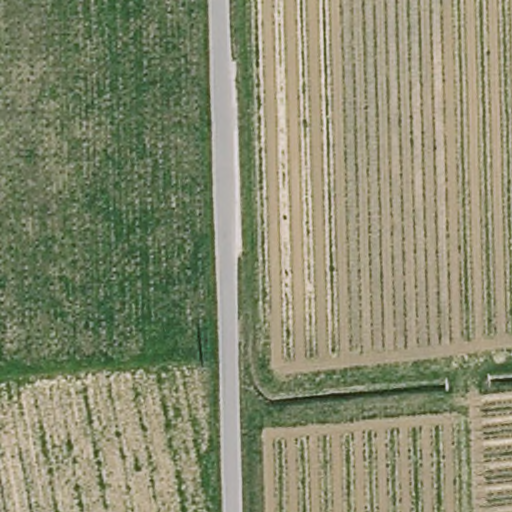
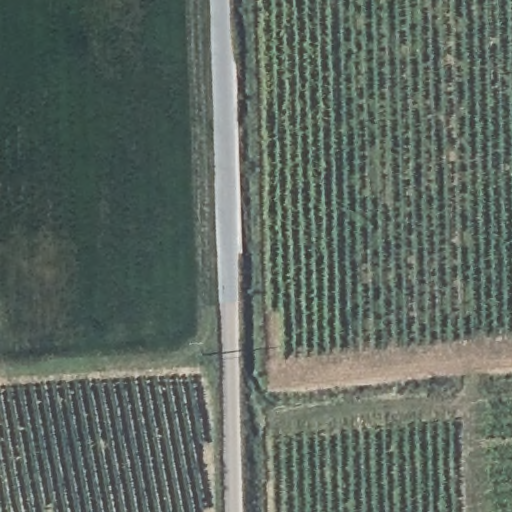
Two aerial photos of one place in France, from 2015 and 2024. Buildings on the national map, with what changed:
[]

